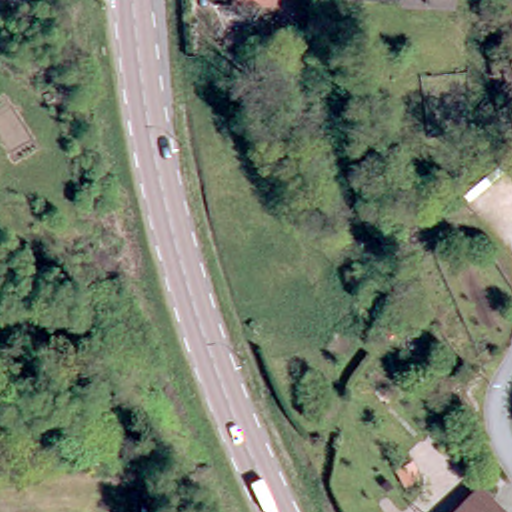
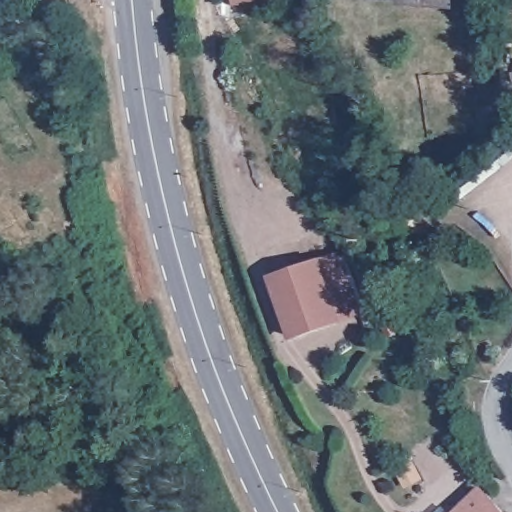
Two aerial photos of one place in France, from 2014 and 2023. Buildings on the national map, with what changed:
unchanged [(236,0),(275,0),(275,7),(237,8),(236,0)]
new [(362,315),(344,323),(293,343),(270,278),(321,260),(340,253),(362,315)]
unchanged [(458,512),(485,484),(485,486),(484,494),(502,512),(458,512)]

